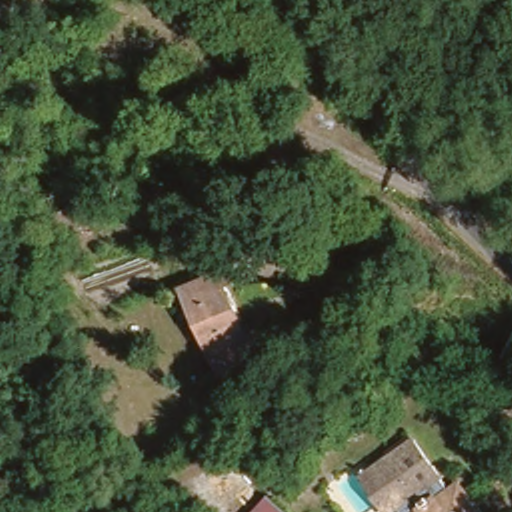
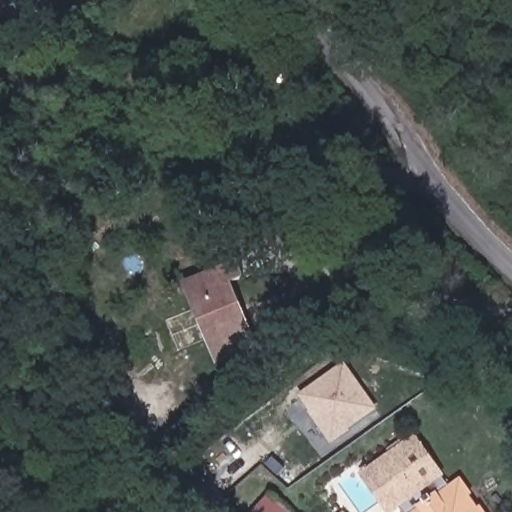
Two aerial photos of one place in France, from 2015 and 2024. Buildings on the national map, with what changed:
unchanged [(224,372),(217,358),(188,299),(180,283),(196,276),(231,258),(237,272),(224,279),(254,340),(261,353),(224,372)]
new [(348,366),(376,411),(331,438),(303,394),(348,366)]
unchanged [(385,511),(361,472),(419,437),(446,473),(385,511)]
unchanged [(418,499),(425,493),(428,498),(449,482),(461,483),(468,495),(464,497),(472,507),(477,505),(482,512),(409,512),(421,503),(418,499)]
unchanged [(289,512),(251,512),(269,493),(289,512)]

